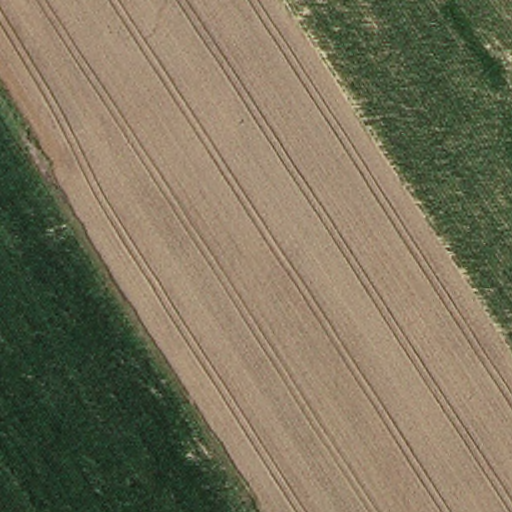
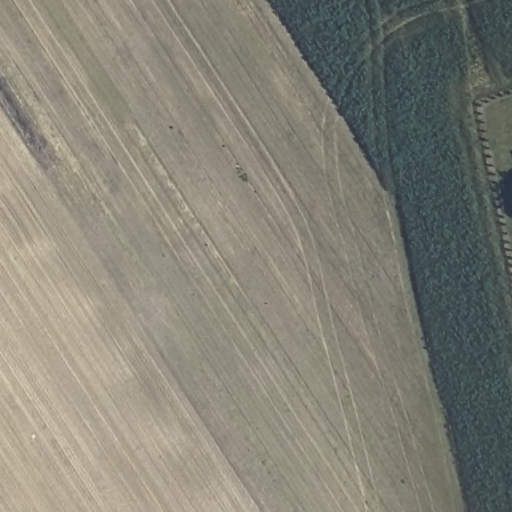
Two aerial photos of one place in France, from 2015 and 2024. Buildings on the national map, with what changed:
[]

